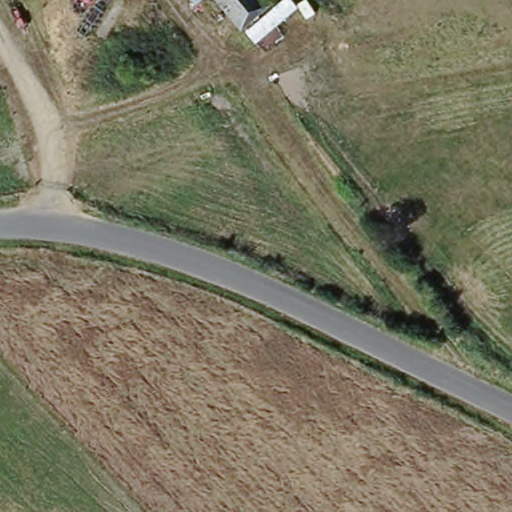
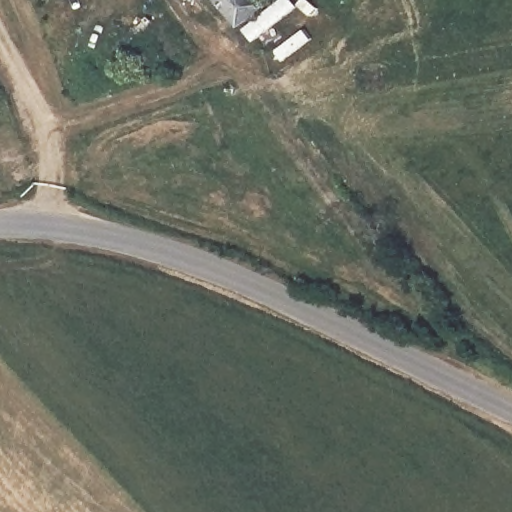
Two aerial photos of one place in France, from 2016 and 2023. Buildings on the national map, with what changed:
unchanged [(231,24),(212,0),(260,0),(231,24)]

